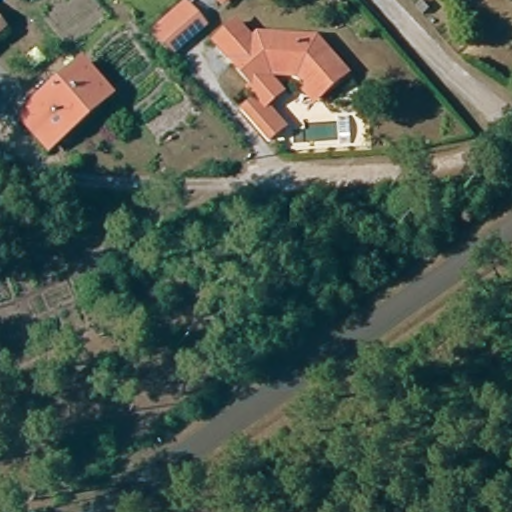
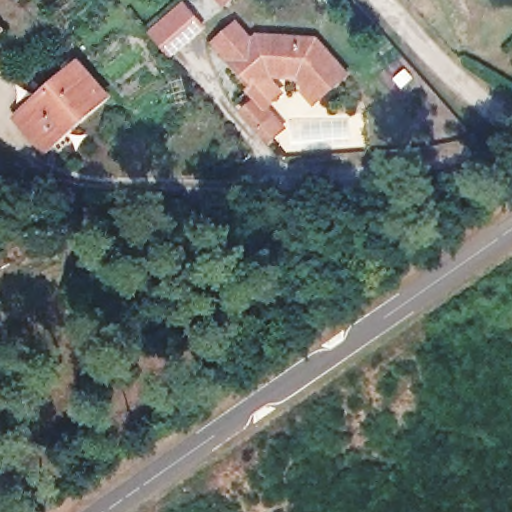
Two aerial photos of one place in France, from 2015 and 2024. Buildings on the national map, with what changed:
unchanged [(202,12),(208,20),(176,48),(169,41),(157,29),(191,0),(202,12)]
unchanged [(217,0),(225,0),(221,4),(217,0)]
unchanged [(302,89),(305,85),(303,84),(296,75),(285,75),(269,75),(266,79),(254,90),(253,89),(209,45),(230,25),(246,41),(252,35),(278,35),(288,35),(311,36),(343,68),(345,70),(317,97),(313,100),(302,89)]
unchanged [(0,44),(0,33),(6,39),(0,44)]
unchanged [(44,151),(15,119),(75,65),(104,97),(44,151)]
unchanged [(281,95),(271,104),(290,126),(268,145),(237,105),(254,90),(266,79),(281,95)]

